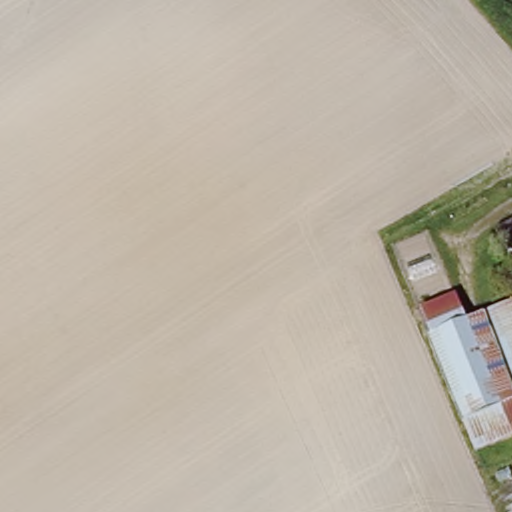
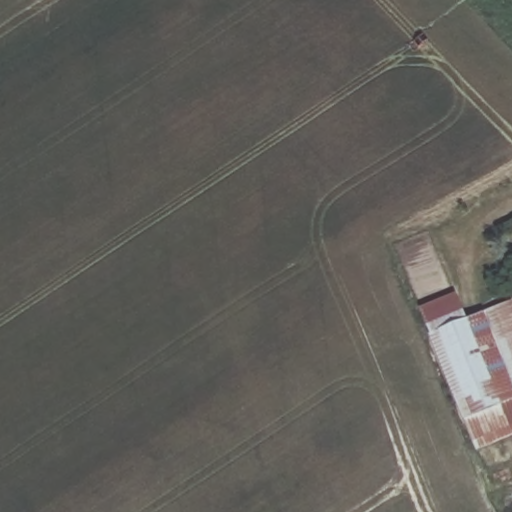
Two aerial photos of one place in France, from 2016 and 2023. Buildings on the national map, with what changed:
unchanged [(475,452),(470,440),(420,315),(439,307),(440,306),(452,301),(452,302),(462,330),(512,309),(512,440),(477,455),(475,452)]

